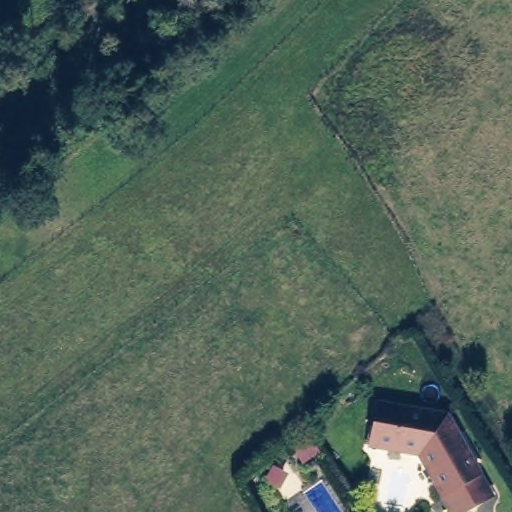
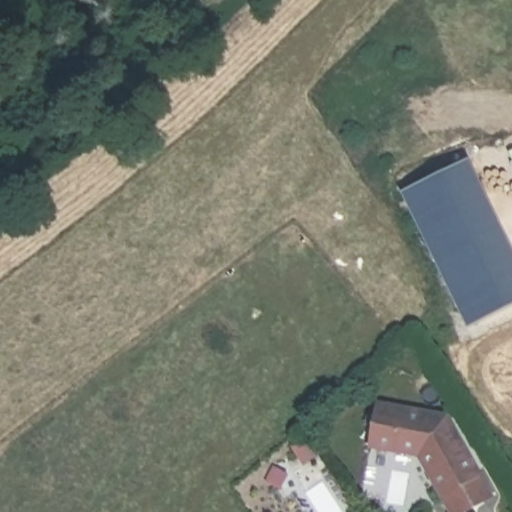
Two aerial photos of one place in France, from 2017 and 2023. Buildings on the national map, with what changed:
new [(472,156),(512,244),(512,303),(465,325),(402,188),(472,156)]
unchanged [(440,421),(490,503),(475,512),(444,512),(413,463),(362,455),(368,411),(440,421)]

